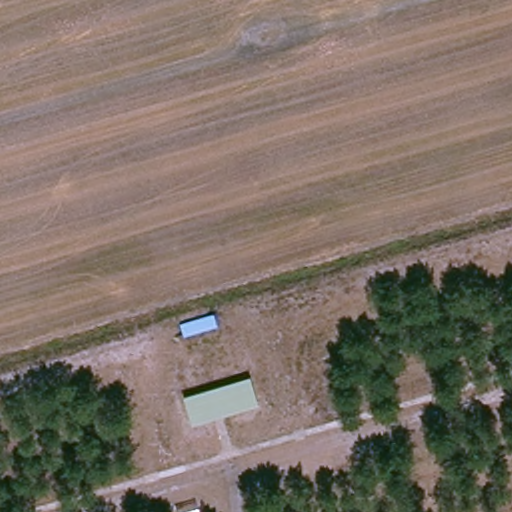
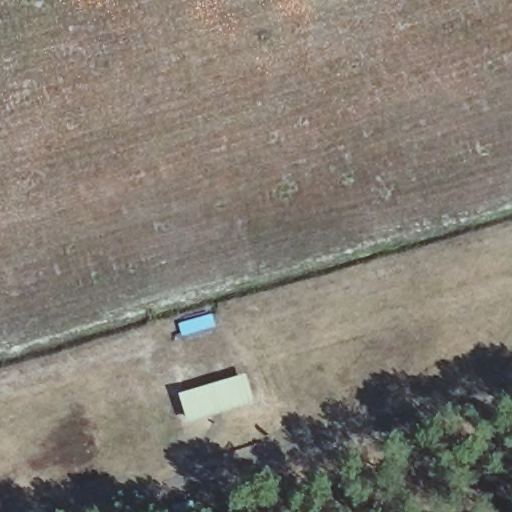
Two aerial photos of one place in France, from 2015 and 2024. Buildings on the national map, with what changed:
unchanged [(246,378),(254,407),(196,424),(188,395),(246,378)]

